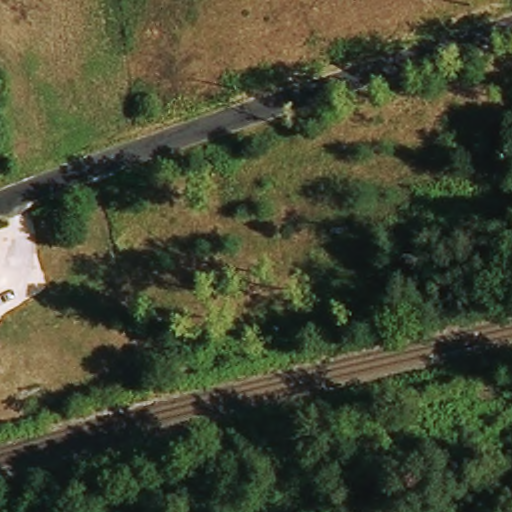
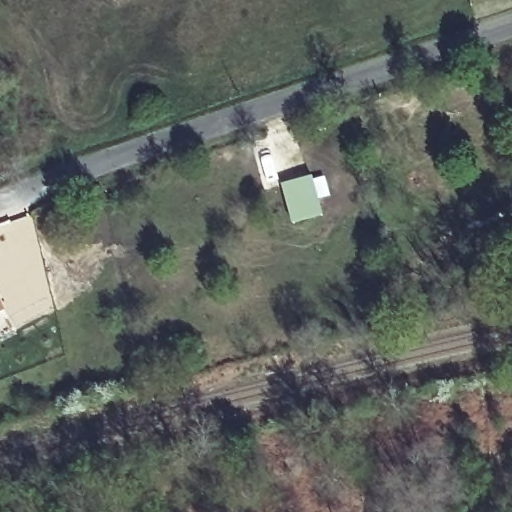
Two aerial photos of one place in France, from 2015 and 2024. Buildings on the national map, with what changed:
new [(324,215),(292,224),(281,185),(313,176),(324,215)]
unchanged [(0,309),(0,296),(5,306),(0,309)]

